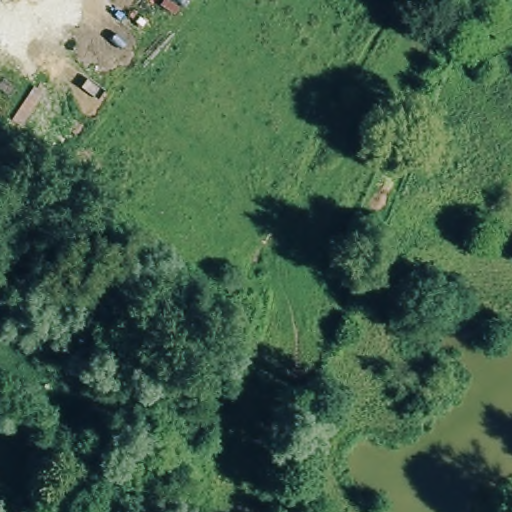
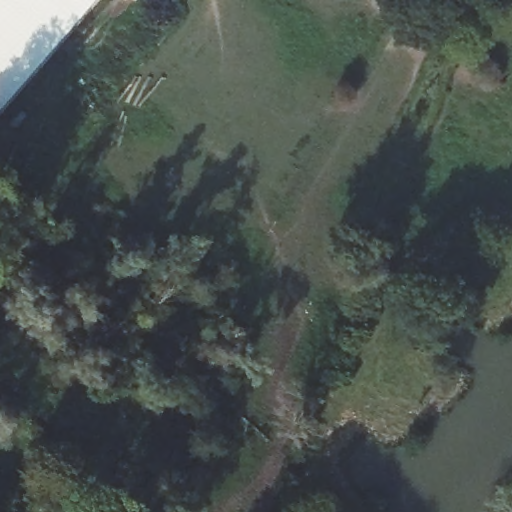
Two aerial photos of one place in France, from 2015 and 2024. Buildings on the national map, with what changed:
new [(96,0),(0,111),(0,0),(96,0)]

